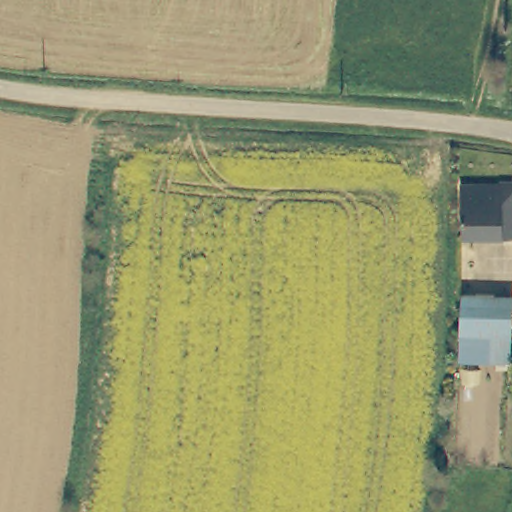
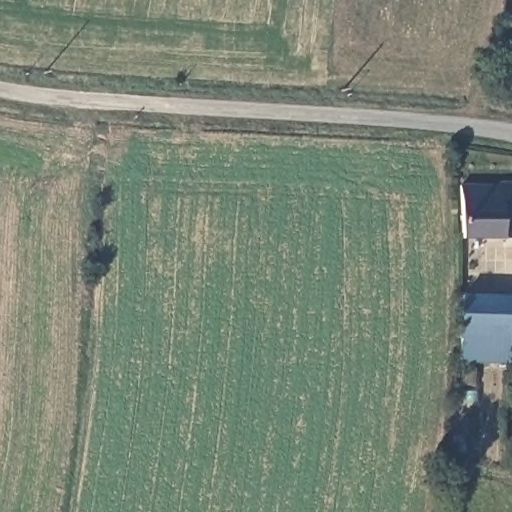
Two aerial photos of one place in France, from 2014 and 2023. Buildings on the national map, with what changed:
unchanged [(465,234),(458,234),(458,184),(462,184),(493,185),(493,181),(512,182),(512,235),(465,234)]
unchanged [(508,365),(459,363),(462,295),(511,297),(508,365)]

